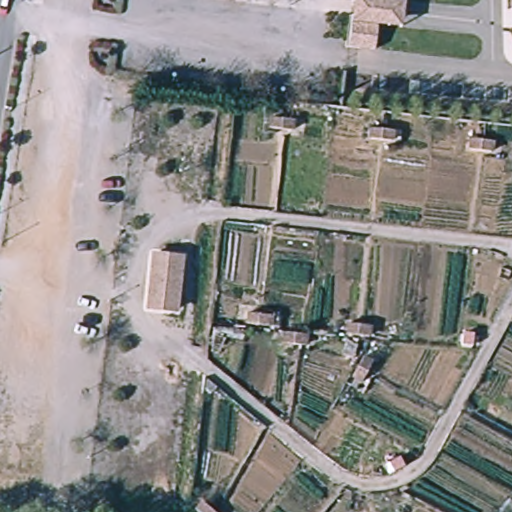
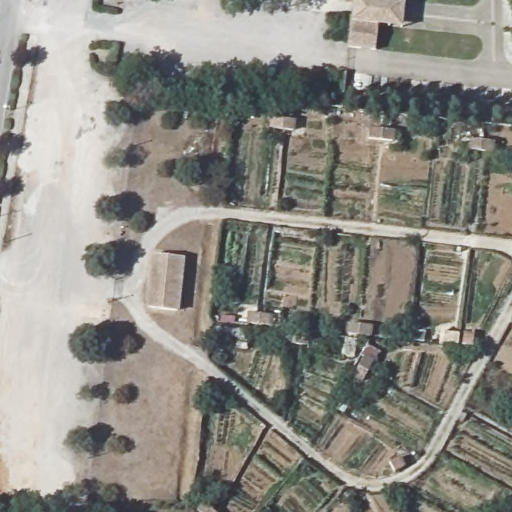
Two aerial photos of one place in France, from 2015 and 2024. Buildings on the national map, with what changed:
unchanged [(399,28),(377,27),(375,48),(347,46),(351,0),(400,0),(399,28)]
unchanged [(291,119),(290,131),(268,129),(269,117),(291,119)]
unchanged [(390,130),(389,142),(367,139),(368,127),(390,130)]
unchanged [(491,140),(490,152),(468,150),(469,138),(491,140)]
unchanged [(181,249),(174,302),(145,299),(151,245),(181,249)]
unchanged [(267,314),(266,326),(244,324),(245,312),(267,314)]
unchanged [(367,326),(365,338),(343,335),(345,323),(367,326)]
unchanged [(303,335),(302,347),(280,345),(281,333),(303,335)]
unchanged [(363,363),(374,368),(363,388),(352,382),(363,363)]

